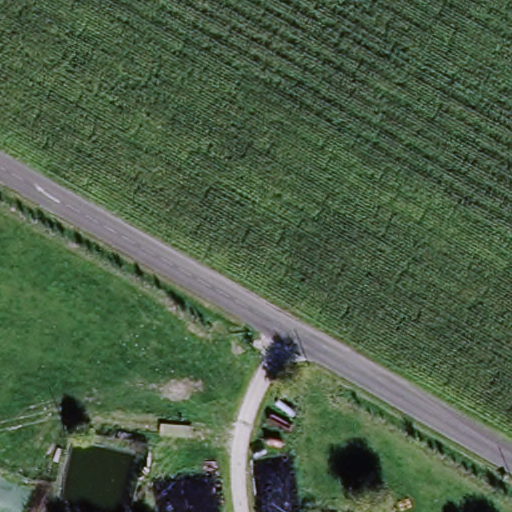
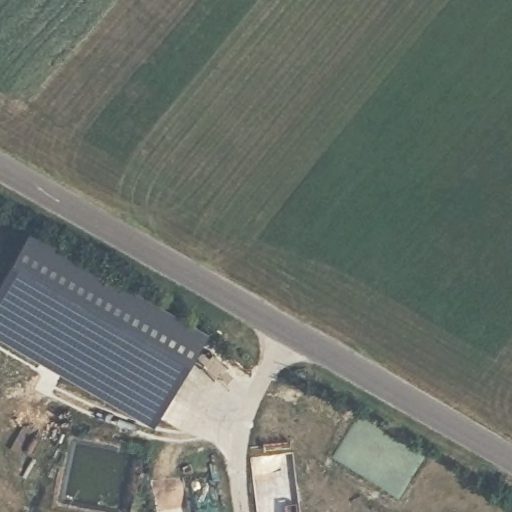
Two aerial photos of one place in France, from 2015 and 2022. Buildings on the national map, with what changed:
new [(155,422),(0,335),(0,280),(30,227),(208,329),(155,422)]

